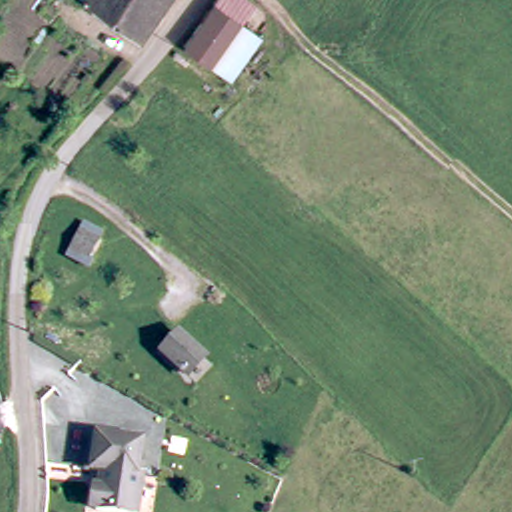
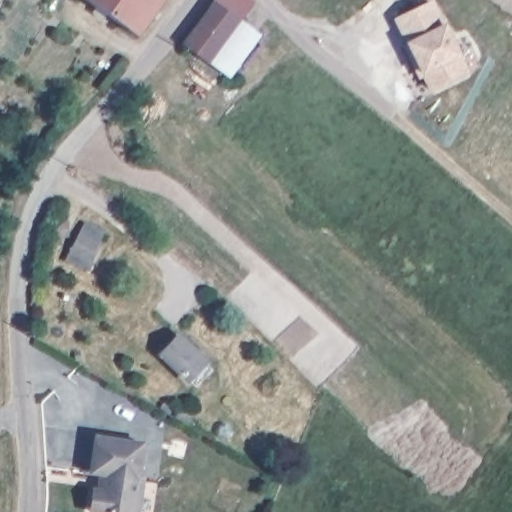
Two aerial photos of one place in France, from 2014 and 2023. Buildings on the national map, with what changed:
unchanged [(137,36),(87,0),(163,0),(137,36)]
unchanged [(193,46),(226,0),(259,0),(265,5),(250,22),(215,63),(193,46)]
new [(445,23),(461,57),(467,71),(427,90),(421,76),(418,78),(402,43),(405,41),(394,16),(428,0),(435,0),(445,23)]
unchanged [(267,33),(232,76),(215,63),(250,22),(267,33)]
unchanged [(96,246),(87,264),(70,255),(79,238),(96,246)]
unchanged [(179,340),(202,361),(187,378),(162,356),(179,340)]
unchanged [(144,476),(149,477),(145,512),(102,512),(97,506),(99,493),(105,489),(107,473),(90,471),(95,435),(149,441),(144,476)]

